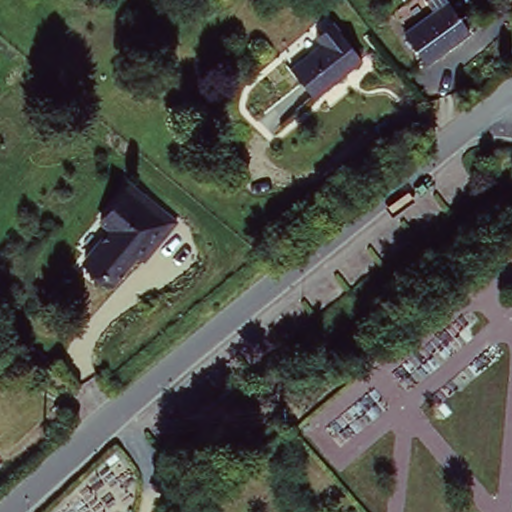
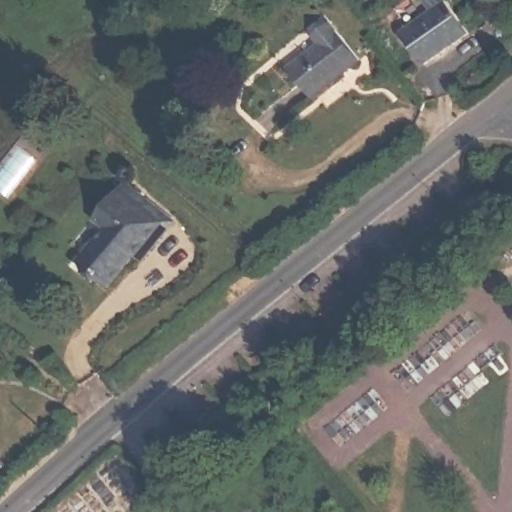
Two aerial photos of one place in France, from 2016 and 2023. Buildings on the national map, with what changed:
unchanged [(466,36),(423,63),(402,28),(432,8),(429,0),(446,0),(466,36)]
unchanged [(335,19),(354,46),(365,61),(314,97),(295,67),(323,43),(320,31),(330,23),(335,19)]
unchanged [(130,248),(106,280),(79,258),(104,222),(96,214),(117,188),(124,179),(135,188),(170,218),(149,245),(139,257),(130,248)]

